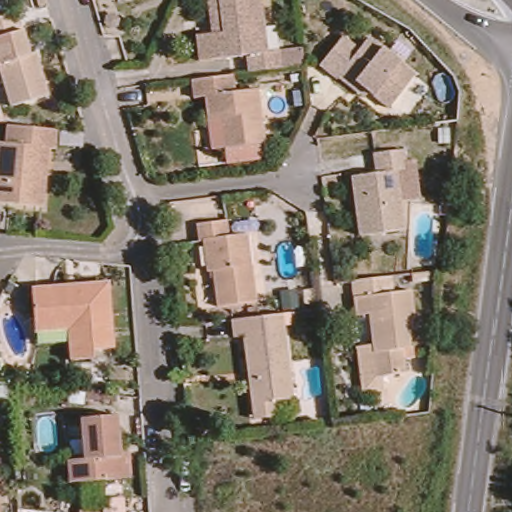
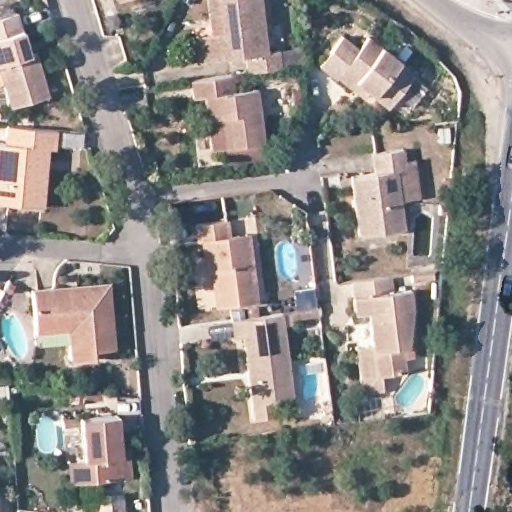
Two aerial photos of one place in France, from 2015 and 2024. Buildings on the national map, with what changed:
unchanged [(196,39),(208,38),(211,37),(206,0),(260,0),(268,56),(278,54),(280,71),(248,75),(246,59),(212,63),(199,65),(196,39)]
unchanged [(28,56),(35,53),(48,95),(9,107),(0,77),(0,18),(15,13),(28,56)]
unchanged [(338,75),(336,78),(318,64),(341,33),(359,46),(368,35),(416,69),(390,104),(369,89),(365,95),(338,75)]
unchanged [(226,118),(213,120),(210,96),(198,98),(197,82),(236,77),(238,93),(261,91),(267,143),(237,146),(229,147),(226,118)]
unchanged [(53,145),(46,145),(40,203),(0,199),(0,139),(4,139),(6,121),(55,126),(53,145)]
unchanged [(373,173),(371,153),(401,149),(403,169),(393,170),(401,230),(356,236),(348,176),(373,173)]
unchanged [(228,232),(238,231),(248,229),(251,260),(256,298),(218,303),(214,267),(207,267),(203,237),(198,237),(196,220),(226,217),(228,232)]
unchanged [(34,324),(31,283),(65,279),(66,281),(106,277),(111,338),(92,340),(93,350),(69,352),(68,334),(35,338),(34,324)]
unchanged [(412,288),(415,310),(410,347),(403,348),(406,373),(377,376),(370,315),(356,317),(354,296),(412,288)]
unchanged [(252,419),(247,373),(243,337),(233,339),(231,321),(263,317),(265,334),(283,331),(290,400),(270,402),(272,418),(252,419)]
unchanged [(65,461),(76,460),(83,460),(80,420),(115,417),(120,479),(79,482),(67,483),(65,461)]

